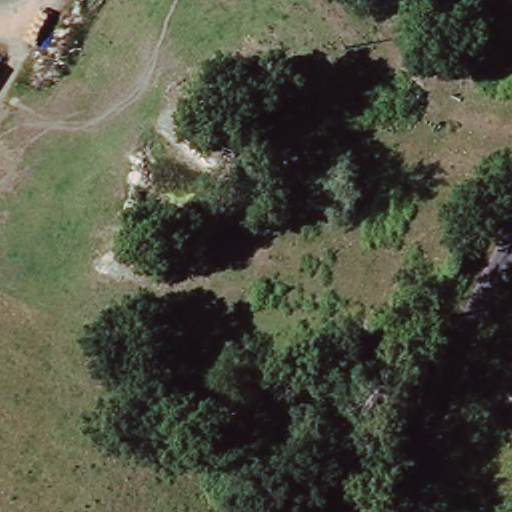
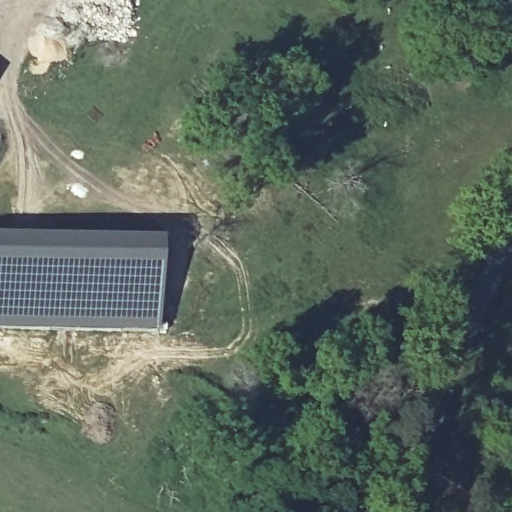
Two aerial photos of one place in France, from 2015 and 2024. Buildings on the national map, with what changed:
new [(156,334),(0,328),(0,233),(161,237),(156,334)]

